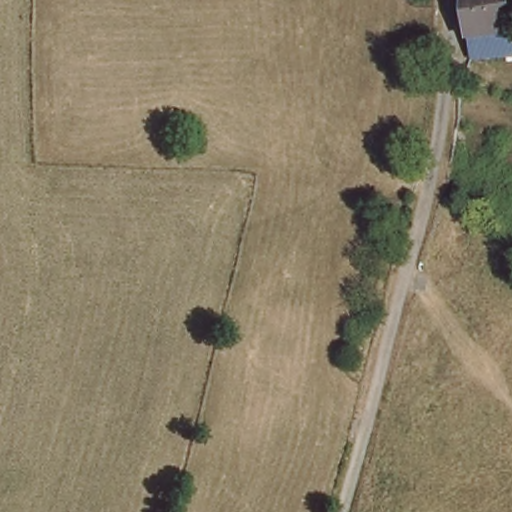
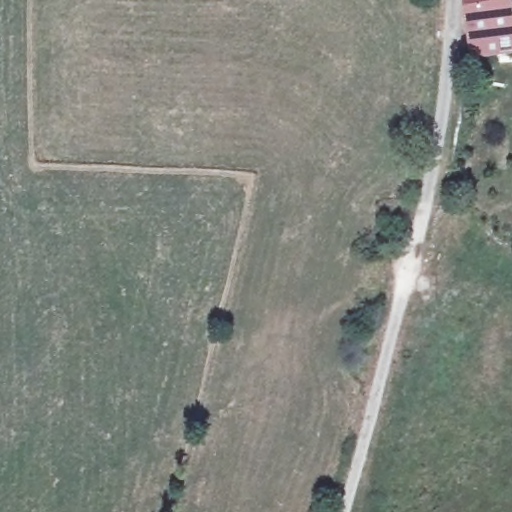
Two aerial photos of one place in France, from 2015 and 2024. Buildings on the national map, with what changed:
unchanged [(512,55),(477,57),(474,0),(512,0),(512,55)]

